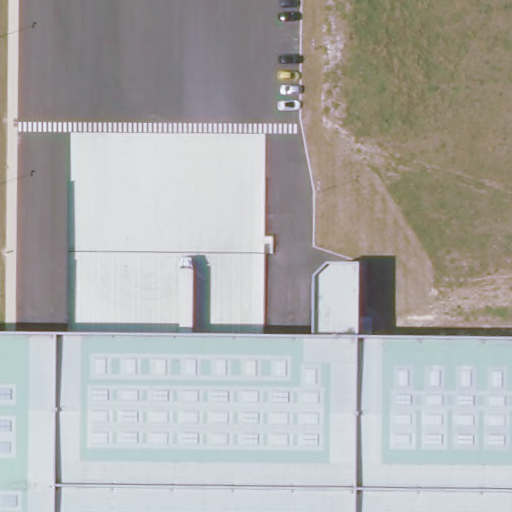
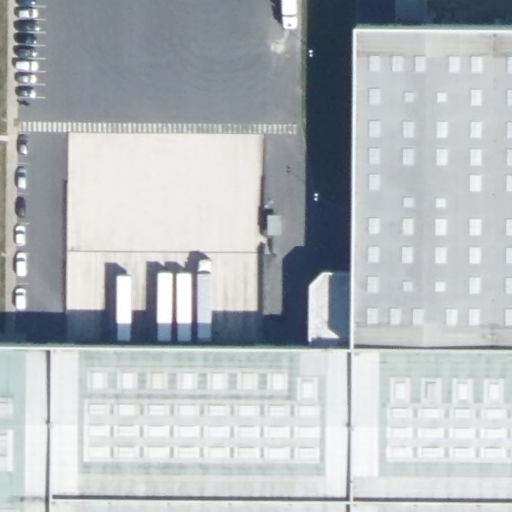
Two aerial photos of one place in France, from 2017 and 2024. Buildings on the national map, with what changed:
new [(512,25),(512,344),(356,342),(311,342),(312,282),(326,268),(356,272),(358,24),(512,25)]
unchanged [(0,512),(0,357),(512,361),(512,512),(0,512)]

